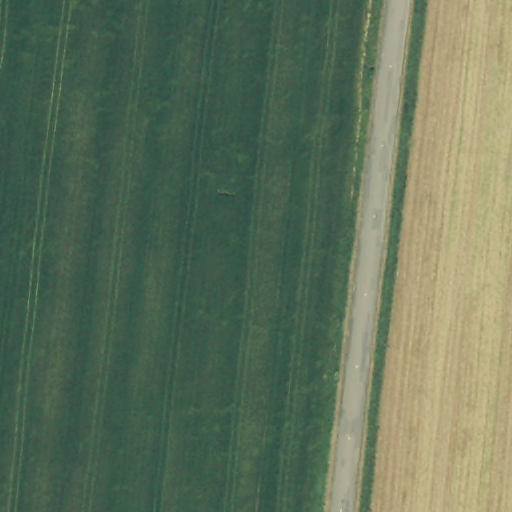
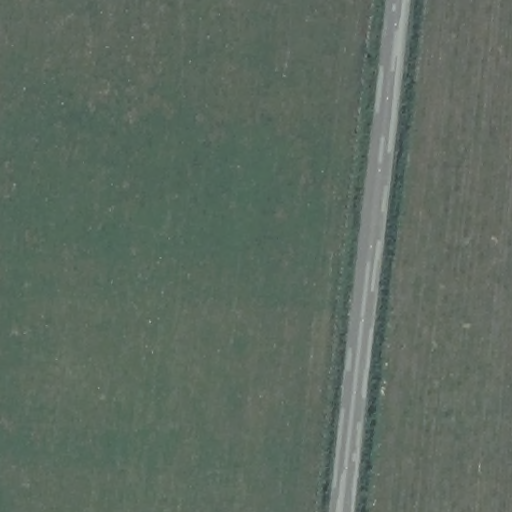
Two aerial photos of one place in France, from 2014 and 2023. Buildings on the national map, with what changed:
[]

